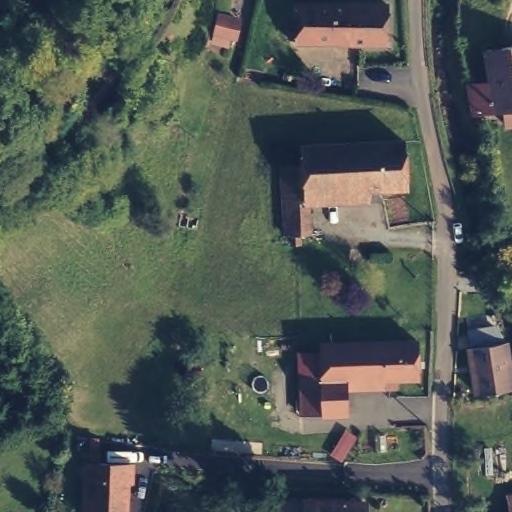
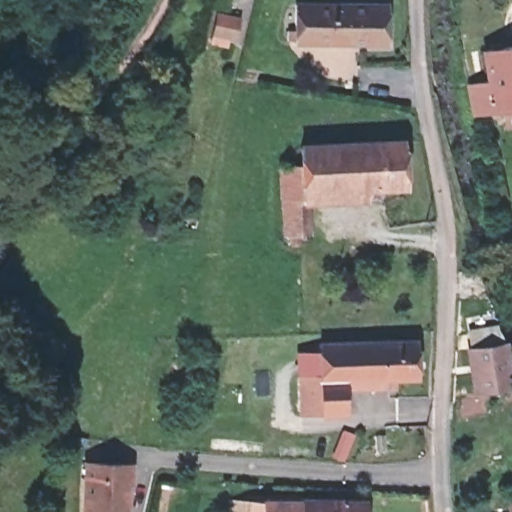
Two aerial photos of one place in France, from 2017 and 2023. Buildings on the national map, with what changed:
unchanged [(388,41),(296,41),(296,2),(387,3),(388,41)]
unchanged [(495,73),(491,43),(496,42),(496,36),(503,35),(504,41),(512,40),(512,102),(480,107),(477,83),(475,77),(495,73)]
unchanged [(324,192),(325,232),(305,233),(302,164),(322,163),(322,144),(424,140),(426,187),(398,188),(324,192)]
unchanged [(502,340),(509,384),(474,390),(467,344),(469,344),(467,327),(492,324),(502,340)]
unchanged [(420,375),(397,376),(396,381),(387,382),(386,376),(347,378),(348,409),(304,411),(303,373),(322,371),(322,340),(418,337),(420,375)]
unchanged [(190,373),(191,359),(205,361),(203,375),(190,373)]
unchanged [(124,480),(123,512),(82,512),(85,460),(130,462),(130,479),(124,480)]
unchanged [(249,512),(250,490),(270,490),(269,512),(249,512)]
unchanged [(370,494),(370,512),(269,512),(270,490),(370,494)]

